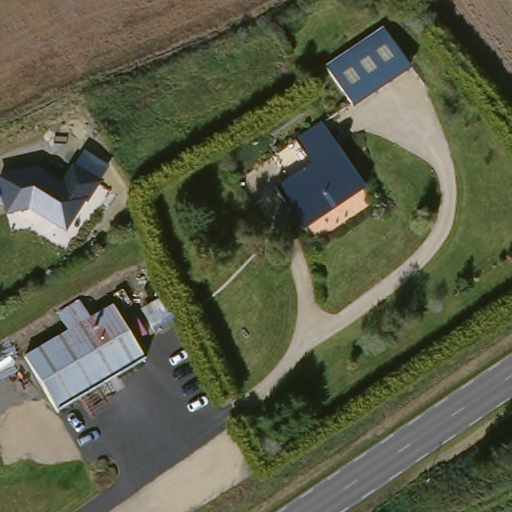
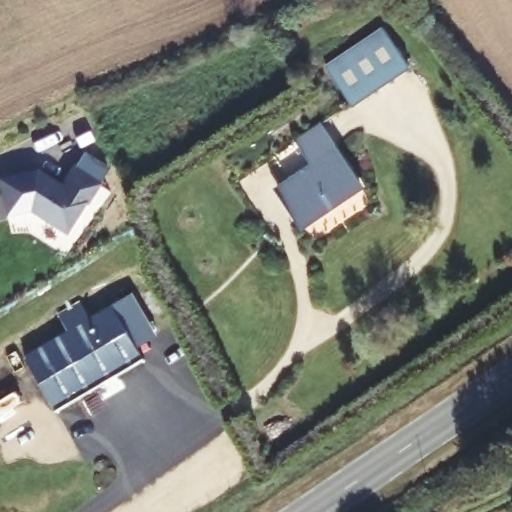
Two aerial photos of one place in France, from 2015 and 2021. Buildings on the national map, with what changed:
unchanged [(393,26),(416,65),(357,102),(333,62),(393,26)]
unchanged [(318,163),(301,135),(327,120),(366,187),(306,224),(282,183),(318,163)]
unchanged [(95,200),(92,199),(75,229),(38,208),(16,215),(6,179),(43,169),(69,184),(81,164),(107,179),(95,200)]
unchanged [(113,304),(143,355),(53,405),(24,353),(113,304)]

